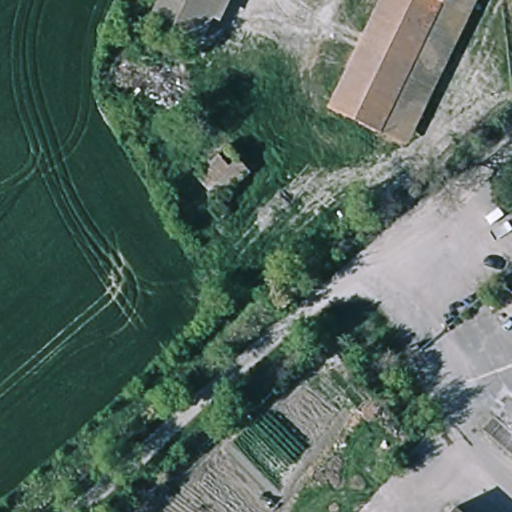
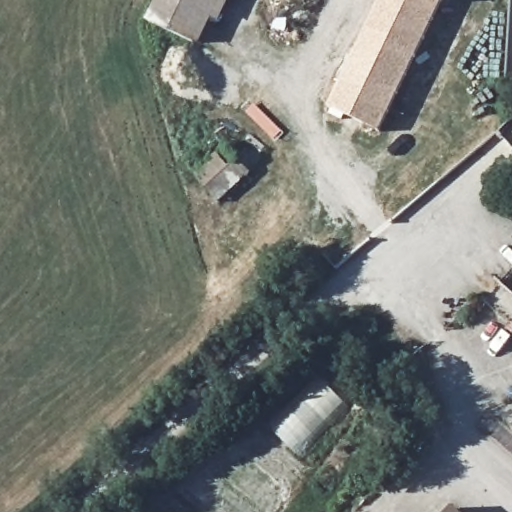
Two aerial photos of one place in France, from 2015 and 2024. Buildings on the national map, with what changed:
unchanged [(205,43),(160,20),(169,0),(223,0),(205,43)]
unchanged [(438,8),(454,17),(394,137),(328,105),(381,0),(441,0),(438,8)]
unchanged [(222,195),(201,171),(229,147),(249,172),(222,195)]
new [(275,430),(322,383),(343,404),(296,452),(275,430)]
unchanged [(448,512),(457,502),(469,512),(448,512)]

